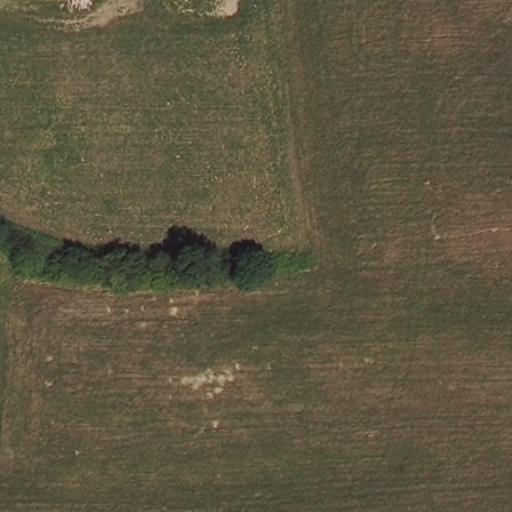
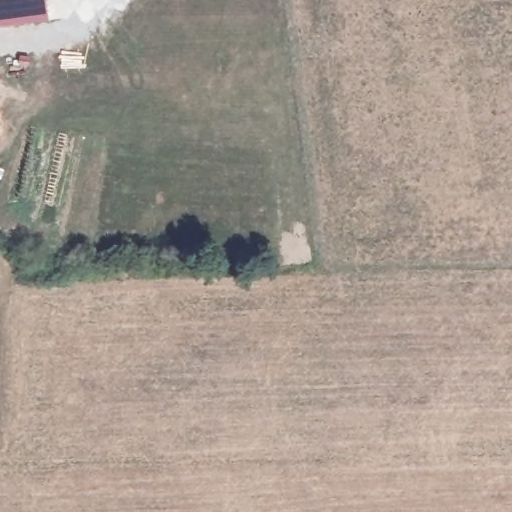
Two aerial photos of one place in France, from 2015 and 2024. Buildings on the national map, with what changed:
new [(47,19),(0,26),(0,0),(44,0),(47,19)]

